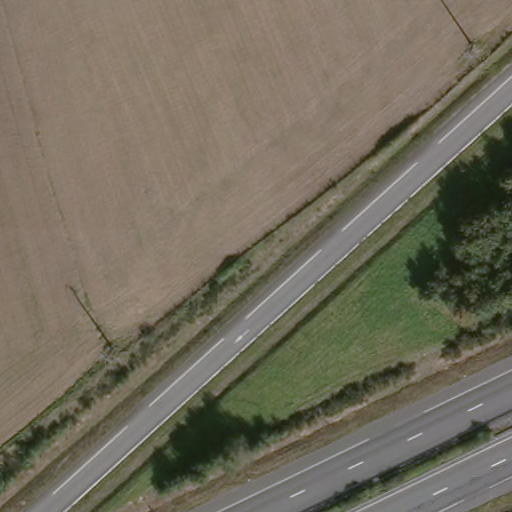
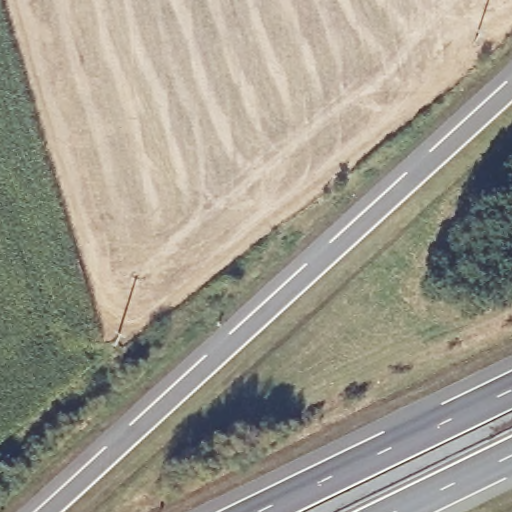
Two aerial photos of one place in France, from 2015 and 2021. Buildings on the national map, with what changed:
[]

